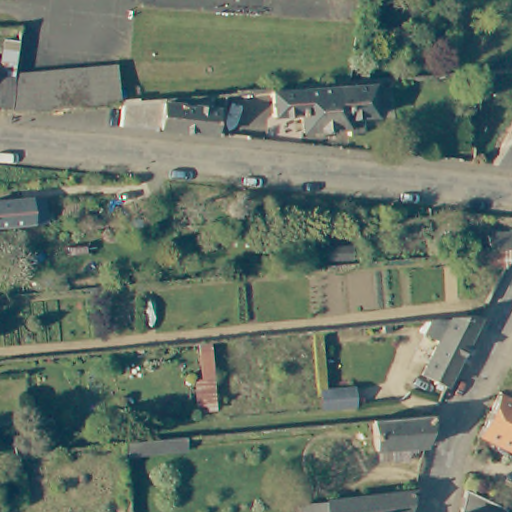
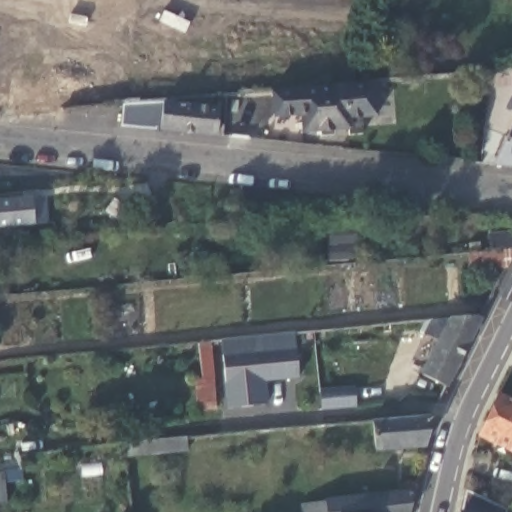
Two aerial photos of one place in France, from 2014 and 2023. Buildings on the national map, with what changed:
unchanged [(0,75),(13,76),(12,79),(111,70),(115,105),(89,107),(32,113),(9,116),(10,109),(0,108),(0,75)]
unchanged [(273,117),(270,93),(299,90),(314,89),(352,86),(365,84),(365,79),(370,79),(370,84),(374,83),(377,117),(362,118),(363,132),(348,134),(347,129),(302,133),(300,115),(273,117)]
unchanged [(124,105),(126,105),(164,102),(219,108),(215,136),(120,127),(124,105)]
unchanged [(497,141),(505,144),(512,130),(512,171),(493,169),(499,157),(492,152),(497,141)]
unchanged [(35,230),(0,234),(0,208),(32,204),(35,230)]
unchanged [(478,239),(512,236),(512,252),(502,271),(478,274),(476,254),(480,254),(478,239)]
unchanged [(423,377),(438,346),(425,340),(433,323),(483,318),(447,388),(423,377)]
unchanged [(388,336),(381,337),(380,328),(387,327),(388,336)]
new [(226,409),(221,340),(295,333),(298,378),(265,382),(267,405),(226,409)]
unchanged [(194,414),(192,345),(210,344),(216,412),(194,414)]
unchanged [(348,391),(350,409),(315,413),(314,394),(348,391)]
unchanged [(478,441),(497,399),(505,403),(512,406),(512,457),(478,441)]
unchanged [(405,450),(406,462),(377,465),(376,451),(371,452),(370,443),(374,443),(372,424),(433,418),(425,448),(405,450)]
unchanged [(186,456),(122,461),(121,449),(121,448),(185,442),(186,456)]
unchanged [(14,462),(12,449),(29,447),(30,460),(16,462),(14,462)]
unchanged [(418,500),(416,512),(307,512),(306,511),(418,500)]
unchanged [(489,512),(469,512),(471,504),(489,512)]

